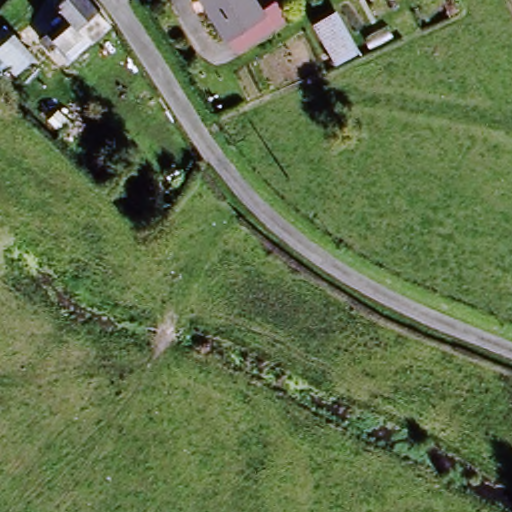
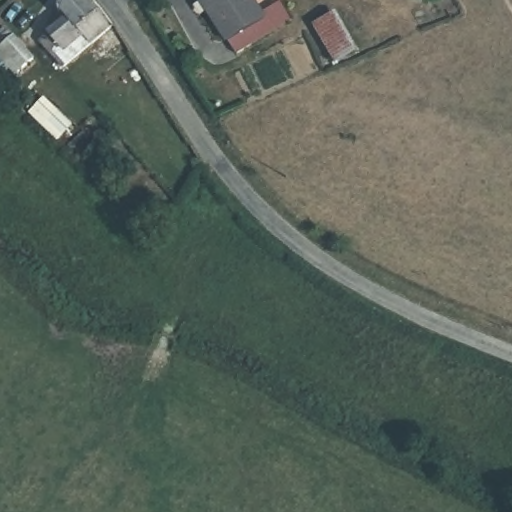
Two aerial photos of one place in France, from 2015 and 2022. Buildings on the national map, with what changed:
unchanged [(55,54),(50,47),(47,49),(37,38),(48,29),(67,15),(62,10),(73,0),(89,0),(100,14),(110,26),(90,43),(69,60),(60,50),(55,54)]
unchanged [(266,0),(272,0),(285,16),(245,46),(233,33),(222,41),(192,0),(247,0),(257,13),(266,6),(263,2),(266,0)]
unchanged [(332,64),(312,21),(335,10),(356,51),(332,64)]
unchanged [(20,71),(5,55),(0,59),(0,28),(2,26),(15,38),(35,56),(20,71)]

